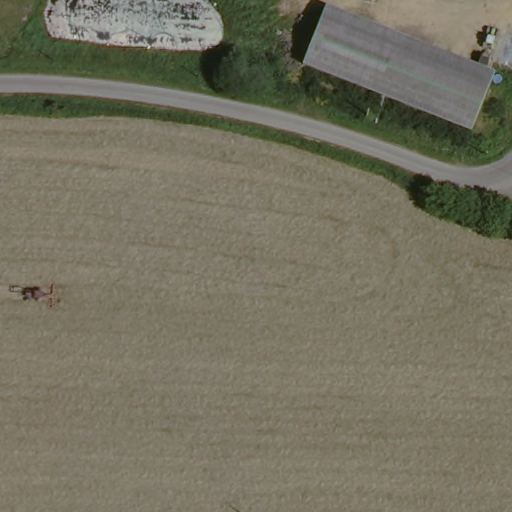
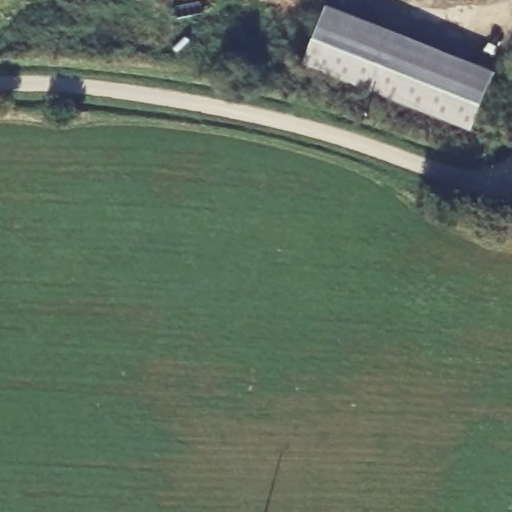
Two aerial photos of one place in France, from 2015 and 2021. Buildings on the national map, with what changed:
unchanged [(328,6),(492,72),(472,129),(304,65),(328,6)]

